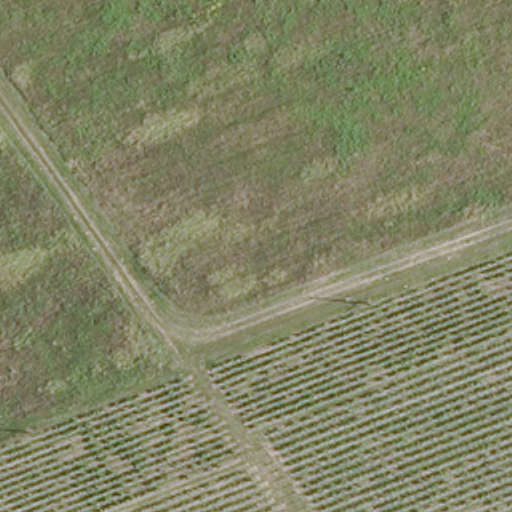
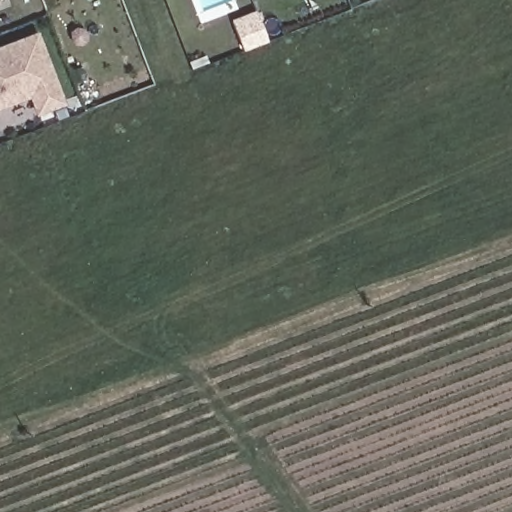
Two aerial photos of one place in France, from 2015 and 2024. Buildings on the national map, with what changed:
new [(68,100),(42,110),(35,93),(0,106),(0,47),(42,31),(68,100)]

